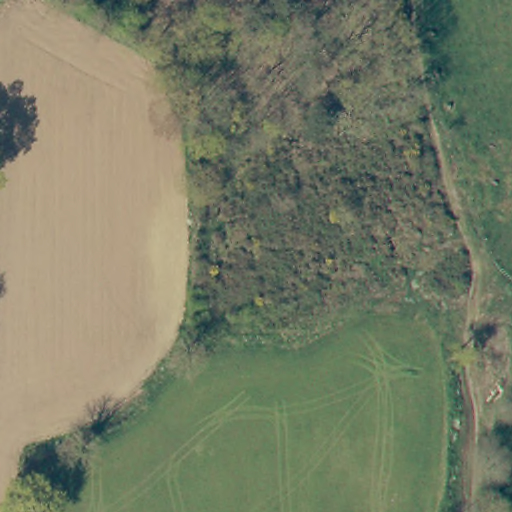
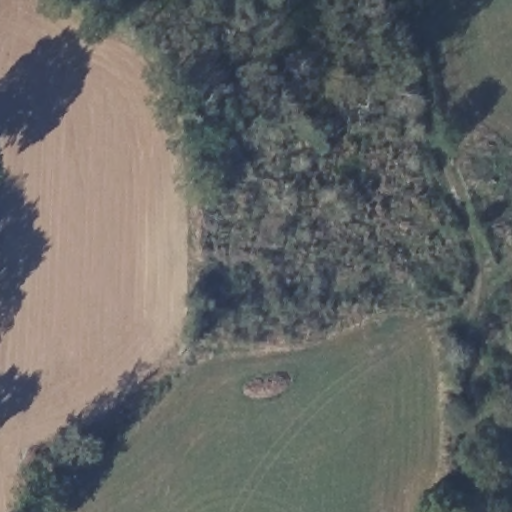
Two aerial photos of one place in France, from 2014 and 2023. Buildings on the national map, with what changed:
[]

